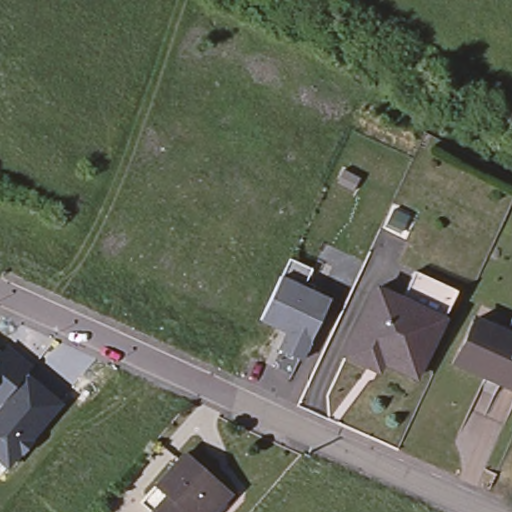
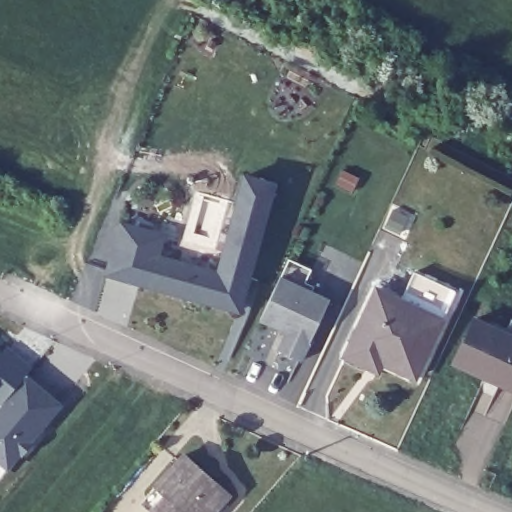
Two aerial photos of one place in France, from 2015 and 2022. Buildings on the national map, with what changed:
new [(277,181),(241,313),(104,275),(120,219),(167,232),(162,254),(217,269),(244,172),(277,181)]
unchanged [(300,361),(278,351),(287,332),(260,320),(280,277),(289,259),(312,269),(305,282),(315,286),(312,292),(330,299),(300,361)]
unchanged [(415,377),(371,356),(367,365),(345,356),(376,290),(400,301),(414,272),(455,290),(415,377)]
unchanged [(455,363),(474,319),(512,336),(512,389),(455,363)]
unchanged [(7,468),(0,462),(0,346),(65,399),(7,468)]
unchanged [(154,511),(157,507),(149,499),(146,496),(162,479),(190,450),(190,451),(212,472),(214,472),(212,475),(230,493),(213,512),(155,512),(154,511)]

